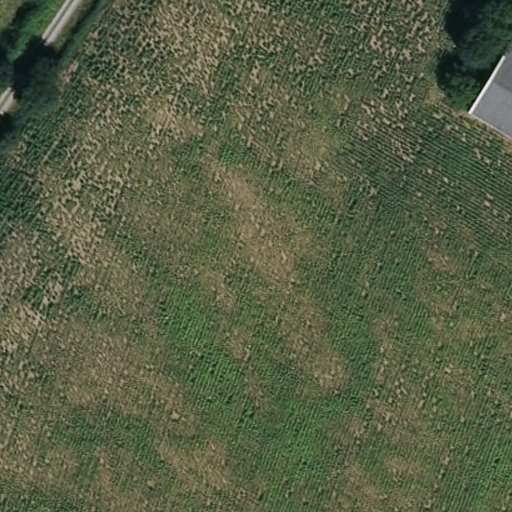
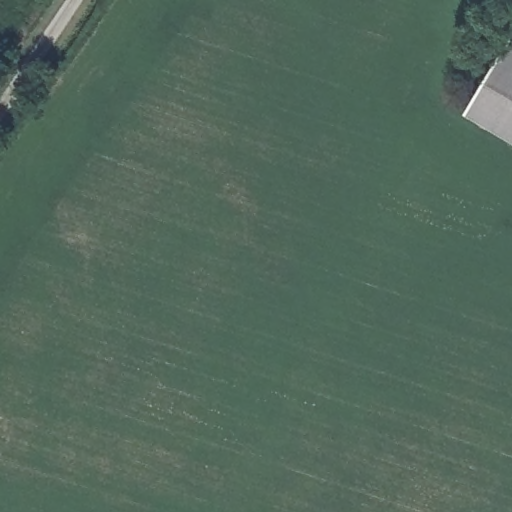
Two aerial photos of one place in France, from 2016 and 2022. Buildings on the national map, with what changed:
unchanged [(512,45),(512,132),(474,109),(512,45)]

